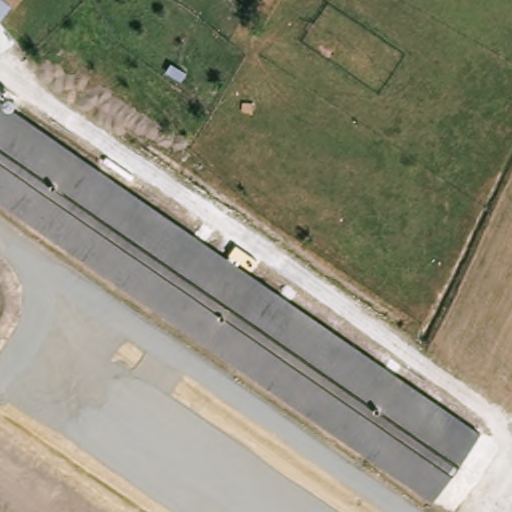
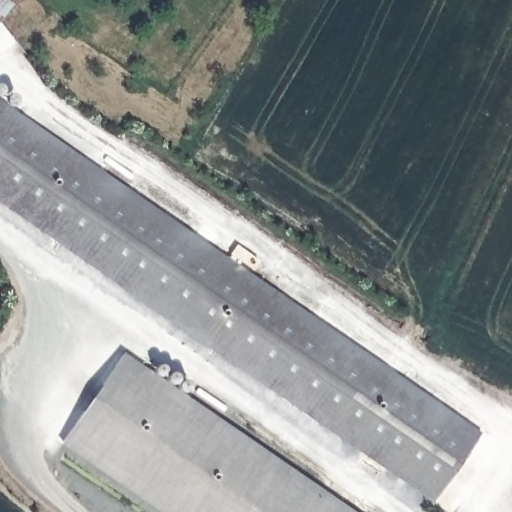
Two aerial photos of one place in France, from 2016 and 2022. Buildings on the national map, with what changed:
unchanged [(15,5),(0,24),(0,0),(9,0),(15,5)]
unchanged [(481,433),(435,503),(415,489),(13,211),(0,202),(0,100),(481,433)]
new [(160,512),(60,443),(124,353),(354,512),(160,512)]

